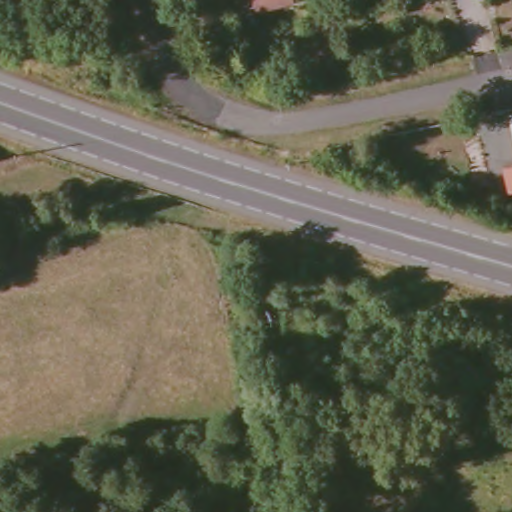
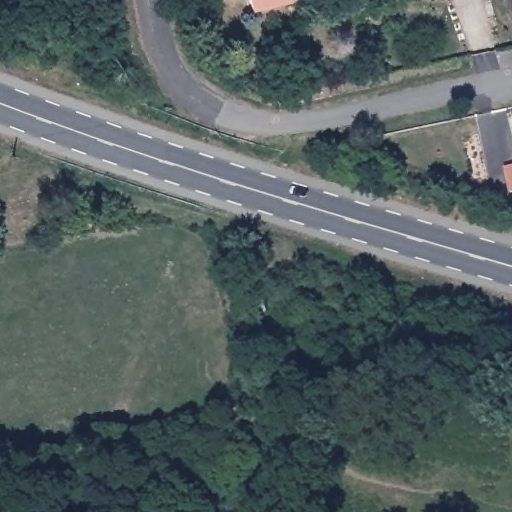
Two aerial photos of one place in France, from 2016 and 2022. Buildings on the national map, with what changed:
unchanged [(265,11),(263,0),(290,0),(291,5),(265,11)]
unchanged [(509,190),(504,167),(512,165),(512,189),(509,190)]

